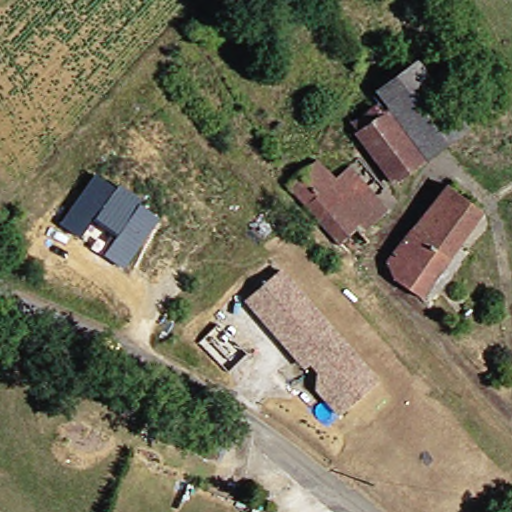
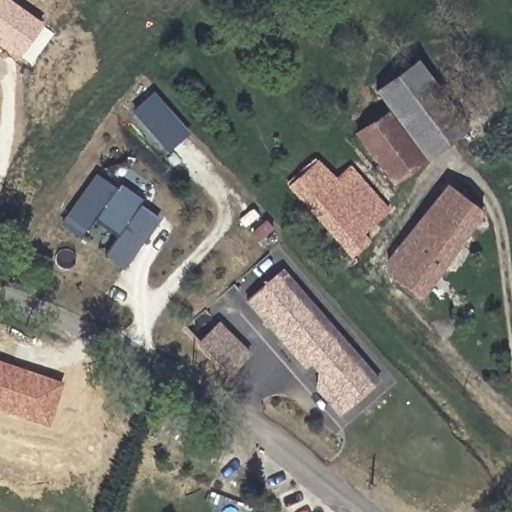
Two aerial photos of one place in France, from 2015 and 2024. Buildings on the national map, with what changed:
new [(0,44),(0,0),(10,0),(43,24),(19,58),(0,44)]
unchanged [(417,63),(467,129),(425,160),(394,182),(358,134),(362,131),(349,114),(378,92),(417,63)]
new [(156,95),(190,132),(171,149),(136,112),(156,95)]
unchanged [(346,168),(382,211),(358,232),(367,242),(349,257),(286,184),(314,161),(331,180),(346,168)]
unchanged [(115,189),(118,185),(140,200),(138,206),(159,219),(124,267),(104,257),(117,235),(94,218),(80,237),(60,223),(95,176),(115,189)]
unchanged [(418,302),(390,282),(383,267),(442,190),(479,218),(418,302)]
unchanged [(318,388),(319,370),(325,366),(317,357),(306,366),(282,338),(248,298),(283,268),(378,379),(349,404),(339,412),(318,388)]
unchanged [(220,322),(249,352),(231,371),(201,341),(220,322)]
new [(0,411),(0,361),(63,381),(49,427),(0,411)]
unchanged [(184,411),(196,417),(197,413),(235,432),(221,461),(172,437),(184,411)]

